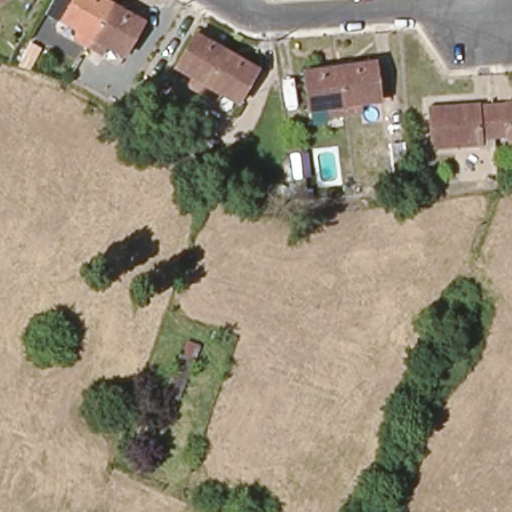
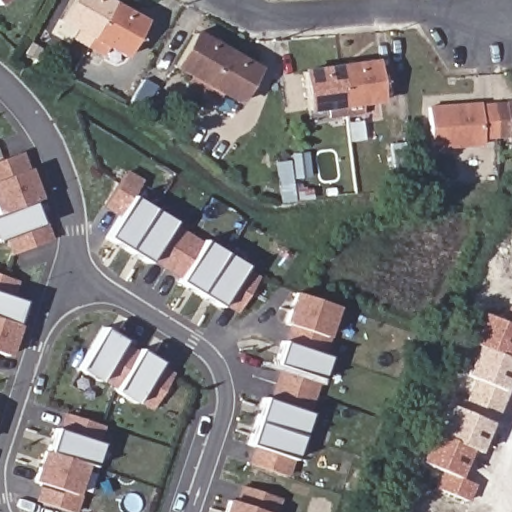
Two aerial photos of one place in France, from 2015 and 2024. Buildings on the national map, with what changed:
unchanged [(1,8),(0,7),(0,0),(9,0),(1,8)]
unchanged [(144,22),(125,56),(107,47),(103,55),(86,46),(74,38),(78,30),(61,21),(73,0),(104,0),(110,3),(144,22)]
unchanged [(189,80),(194,71),(177,60),(195,29),(224,45),(257,64),(240,97),(221,87),(216,95),(201,87),(189,80)]
unchanged [(334,113),(333,104),(311,106),(306,67),(341,64),(378,60),(382,98),(363,100),(365,111),(346,112),(334,113)]
unchanged [(510,98),(512,98),(512,129),(496,130),(485,131),(486,139),(436,142),(434,105),(483,101),(483,103),(494,102),(510,101),(510,98)]
new [(14,254),(8,237),(0,240),(0,214),(2,213),(0,209),(0,162),(19,155),(50,240),(14,254)]
new [(236,315),(219,305),(106,237),(119,215),(103,206),(126,170),(142,180),(131,196),(245,266),(259,276),(236,315)]
new [(15,281),(9,298),(23,302),(7,353),(0,351),(0,276),(15,281)]
new [(327,336),(332,338),(327,357),(294,462),(288,478),(245,463),(249,444),(288,325),(283,323),(293,292),(337,306),(327,336)]
new [(433,486),(442,472),(416,461),(429,432),(435,434),(447,405),(455,408),(468,377),(462,373),(475,345),(465,342),(478,313),(494,319),(504,305),(512,309),(512,347),(507,358),(512,360),(512,371),(476,453),(470,450),(457,478),(476,485),(469,502),(433,486)]
new [(150,412),(133,402),(78,368),(104,327),(160,363),(174,372),(150,412)]
demolished [(188,356),(173,394),(168,391),(182,353),(188,356)]
demolished [(150,400),(141,396),(146,383),(155,387),(150,400)]
new [(98,444),(91,467),(83,464),(73,494),(78,496),(72,512),(70,512),(37,501),(43,484),(35,481),(45,451),(48,452),(56,428),(62,430),(66,414),(102,425),(95,443),(98,444)]
new [(222,512),(226,499),(235,501),(240,484),(282,498),(277,512),(222,512)]

